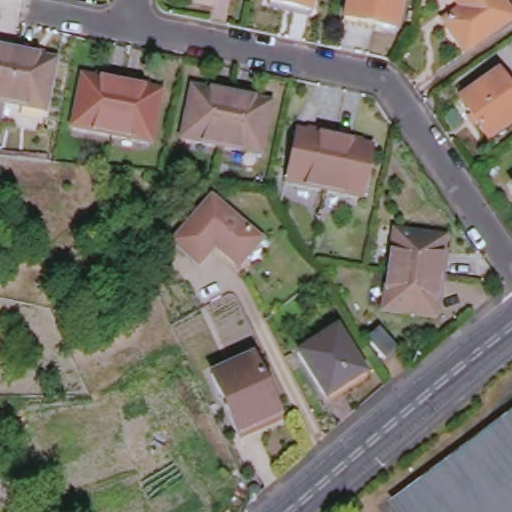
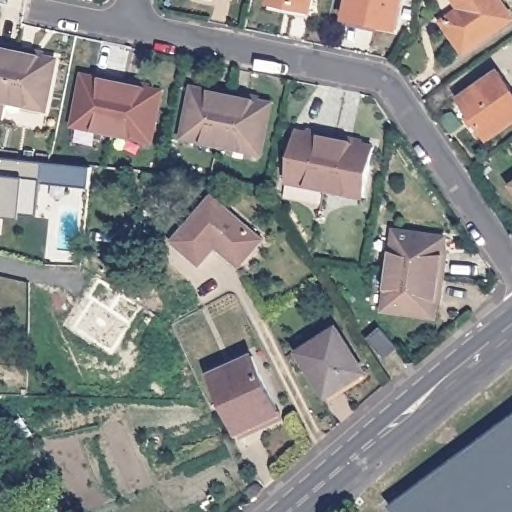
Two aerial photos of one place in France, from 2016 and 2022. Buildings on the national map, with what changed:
unchanged [(310,12),(270,5),(271,0),(313,0),(310,12)]
unchanged [(396,31),(345,20),(349,0),(403,0),(396,31)]
unchanged [(444,22),(462,10),(455,0),(500,0),(512,17),(512,21),(465,52),(444,22)]
unchanged [(0,45),(17,49),(7,101),(0,100),(0,48),(0,45)]
unchanged [(35,52),(34,57),(41,59),(40,56),(56,60),(46,109),(7,101),(17,49),(35,52)]
unchanged [(460,99),(497,71),(512,91),(512,123),(488,140),(460,99)]
unchanged [(100,80),(99,81),(107,83),(108,78),(124,81),(112,134),(75,125),(84,76),(100,80)]
unchanged [(140,85),(139,90),(145,91),(147,89),(162,92),(152,141),(112,134),(124,81),(140,85)]
unchanged [(194,89),(208,92),(208,95),(215,96),(217,90),(232,94),(221,146),(183,139),(194,89)]
unchanged [(249,97),(248,102),(255,104),(255,102),(270,105),(260,154),(221,146),(232,94),(249,97)]
unchanged [(297,132),(311,135),(311,137),(319,139),(319,134),(337,137),(325,190),(287,181),(297,132)]
unchanged [(351,140),(351,145),(359,147),(359,145),(374,149),(364,197),(325,190),(337,137),(351,140)]
new [(89,188),(42,182),(37,217),(22,216),(22,220),(0,217),(0,159),(90,168),(89,188)]
unchanged [(245,265),(222,245),(205,264),(179,241),(217,196),(267,240),(245,265)]
unchanged [(445,236),(443,252),(441,253),(440,260),(445,261),(442,278),(389,271),(395,230),(445,236)]
unchanged [(440,295),(435,293),(434,300),(436,301),(434,318),(384,310),(389,271),(442,278),(440,295)]
unchanged [(398,347),(386,359),(369,337),(380,326),(398,347)]
unchanged [(365,373),(327,396),(299,352),(337,327),(365,373)]
unchanged [(279,415),(237,434),(212,375),(253,356),(279,415)]
unchanged [(512,420),(512,512),(398,512),(394,506),(512,420)]

